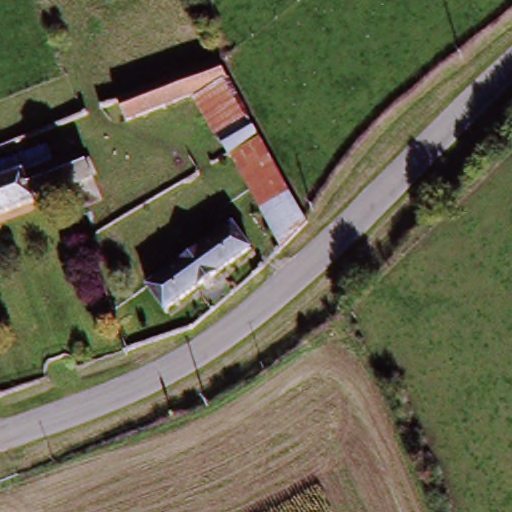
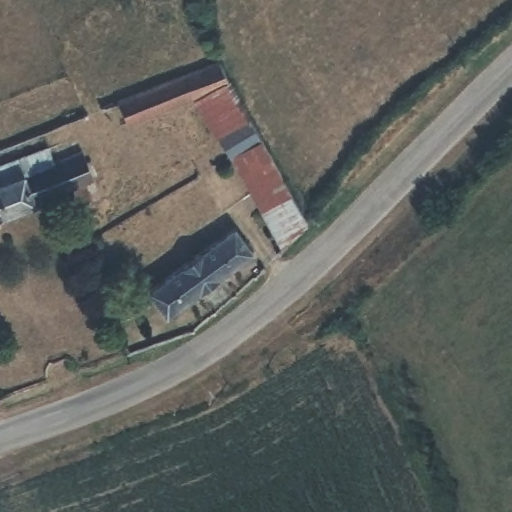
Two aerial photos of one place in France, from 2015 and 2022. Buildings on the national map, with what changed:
unchanged [(194,106),(126,130),(117,109),(227,66),(310,231),(282,252),(194,106)]
unchanged [(98,186),(84,192),(0,223),(0,175),(57,155),(61,169),(90,159),(98,186)]
unchanged [(233,236),(250,261),(167,316),(150,290),(233,236)]

